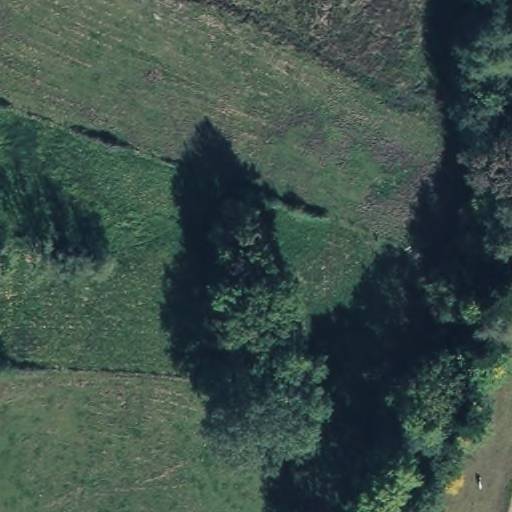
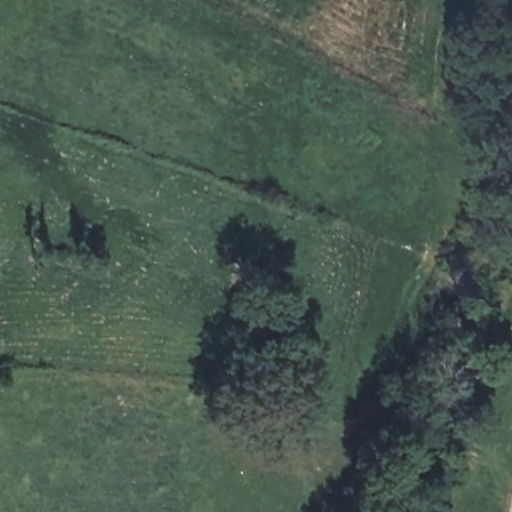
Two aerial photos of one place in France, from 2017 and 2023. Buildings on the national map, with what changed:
unchanged [(407,395),(415,403),(398,422),(390,414),(407,395)]

